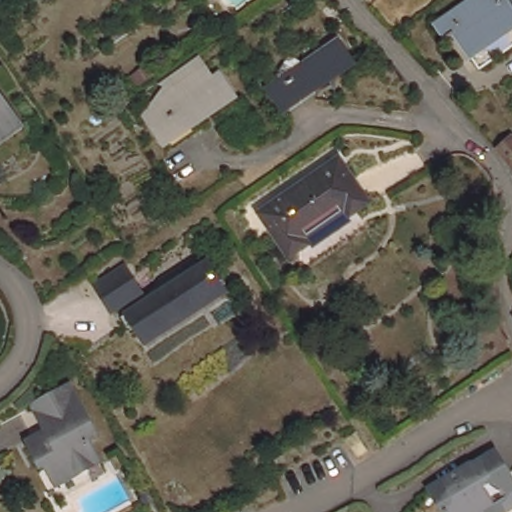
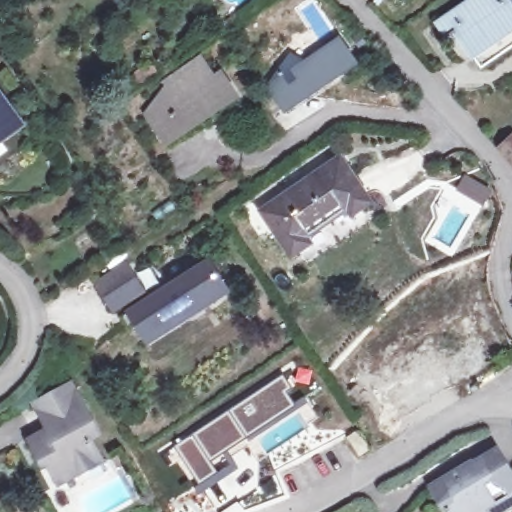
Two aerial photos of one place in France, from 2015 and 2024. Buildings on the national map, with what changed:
unchanged [(451,29),(444,34),(433,19),(460,0),(506,0),(512,8),(512,40),(477,64),(451,29)]
unchanged [(358,66),(289,114),(272,93),(294,65),(305,71),(344,45),(358,66)]
unchanged [(217,65),(208,71),(200,59),(209,53),(217,65)]
unchanged [(157,69),(137,82),(131,72),(150,59),(157,69)]
unchanged [(140,126),(163,96),(161,92),(193,70),(203,84),(212,79),(226,100),(155,148),(140,126)]
unchanged [(0,128),(0,89),(18,114),(0,128)]
unchanged [(0,135),(0,129),(2,133),(0,135)]
unchanged [(505,152),(504,150),(512,143),(512,160),(505,152)]
unchanged [(311,245),(292,259),(262,212),(340,158),(372,202),(350,216),(347,211),(306,238),(311,245)]
unchanged [(209,261),(225,287),(144,338),(135,323),(130,326),(122,315),(209,261)]
unchanged [(97,283),(127,264),(142,290),(112,309),(97,283)]
new [(282,373),(291,388),(287,390),(295,405),(249,441),(228,409),(282,373)]
unchanged [(59,491),(52,480),(41,459),(37,461),(23,435),(42,424),(29,400),(35,396),(65,380),(92,431),(85,435),(95,456),(102,468),(59,491)]
new [(228,409),(249,441),(220,461),(223,471),(197,488),(178,460),(170,465),(162,451),(228,409)]
unchanged [(479,464),(482,471),(505,458),(512,471),(512,509),(507,512),(450,512),(437,489),(479,464)]
unchanged [(389,495),(397,512),(372,512),(369,504),(389,495)]

